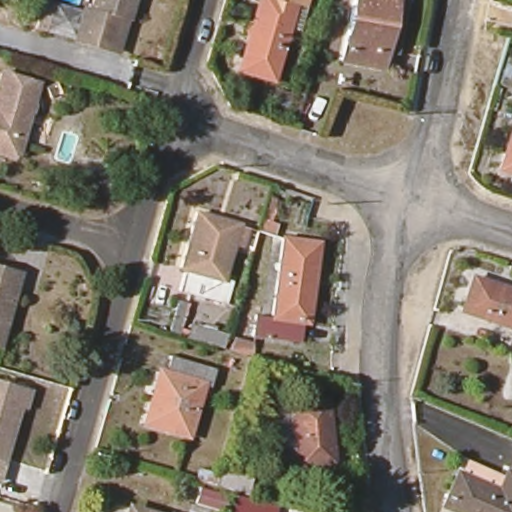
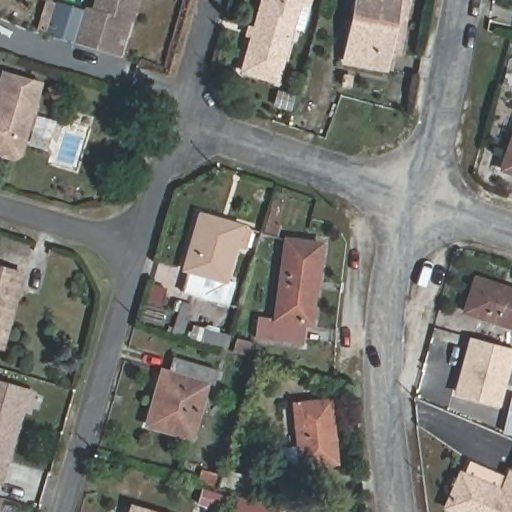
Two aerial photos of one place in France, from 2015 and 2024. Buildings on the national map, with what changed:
unchanged [(84,43),(93,11),(100,14),(104,0),(144,0),(138,24),(136,24),(127,55),(119,54),(84,43)]
unchanged [(255,0),(302,0),(299,7),(303,9),(296,34),(284,31),(269,85),(235,75),(255,0)]
unchanged [(384,74),(377,72),(336,65),(345,21),(349,0),(396,0),(401,1),(391,59),(388,59),(384,74)]
unchanged [(10,76),(47,86),(28,156),(20,160),(0,154),(0,156),(0,107),(1,107),(10,76)]
unchanged [(499,177),(511,145),(512,140),(512,182),(499,177)]
unchanged [(223,277),(233,280),(226,302),(179,289),(185,268),(181,266),(197,211),(239,224),(223,277)]
unchanged [(275,255),(257,250),(259,245),(263,230),(280,235),(275,255)]
unchanged [(313,321),(308,321),(305,341),(259,335),(261,314),(277,316),(288,236),(323,241),(313,321)]
unchanged [(0,347),(0,267),(30,275),(9,350),(0,347)]
unchanged [(462,310),(473,276),(512,289),(512,327),(462,310)]
unchanged [(179,337),(170,335),(180,305),(188,306),(179,337)]
unchanged [(224,351),(189,340),(194,328),(228,338),(224,351)]
unchanged [(259,355),(235,347),(239,335),(258,340),(259,355)]
new [(468,336),(512,348),(512,358),(499,406),(453,393),(468,336)]
unchanged [(188,443),(145,431),(160,380),(165,381),(170,365),(215,378),(210,395),(202,392),(188,443)]
unchanged [(0,459),(0,383),(35,393),(30,408),(25,407),(9,462),(0,459)]
unchanged [(287,411),(302,410),(302,406),(338,402),(344,465),(308,467),(293,469),(287,411)]
unchanged [(439,510),(453,477),(456,478),(462,465),(500,482),(503,476),(512,480),(512,512),(445,512),(439,510)]
unchanged [(220,485),(199,478),(204,466),(224,472),(220,485)]
unchanged [(254,493),(221,483),(226,468),(259,477),(254,493)]
unchanged [(278,512),(243,512),(238,510),(242,495),(279,506),(278,512)]
unchanged [(129,510),(134,512),(129,512),(129,510)]

